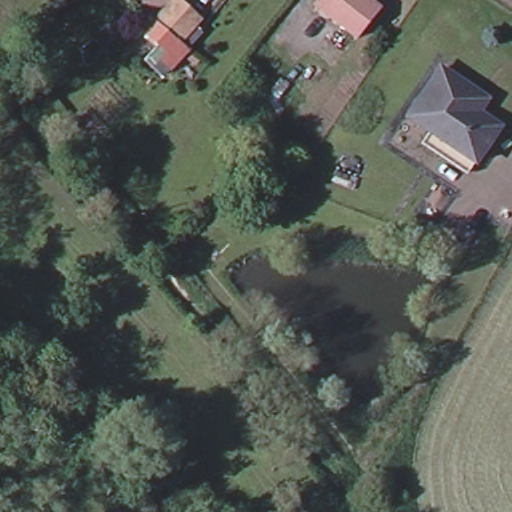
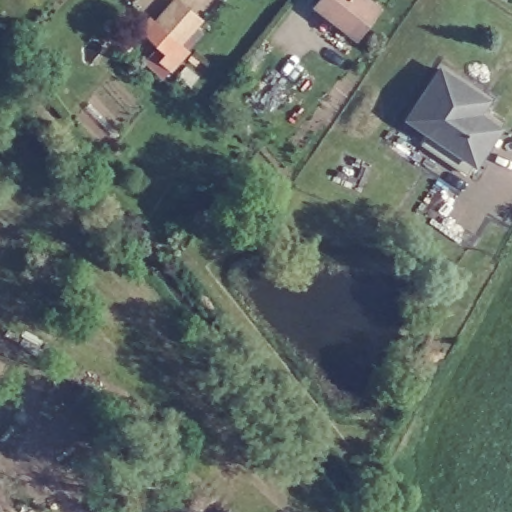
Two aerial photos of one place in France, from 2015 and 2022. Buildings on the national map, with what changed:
unchanged [(158,54),(152,50),(157,43),(142,30),(136,26),(148,12),(153,16),(166,0),(179,0),(193,11),(173,36),(184,45),(169,64),(158,54)]
unchanged [(376,4),(353,34),(312,1),(312,0),(371,0),(376,4)]
unchanged [(425,136),(433,124),(410,109),(441,61),(479,85),(487,91),(478,104),(500,118),(477,153),(469,164),(425,136)]

